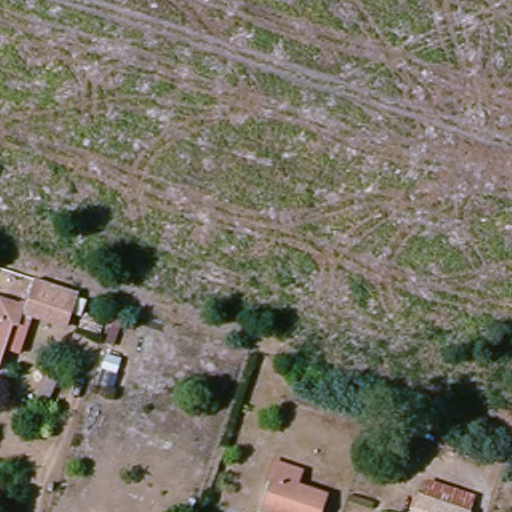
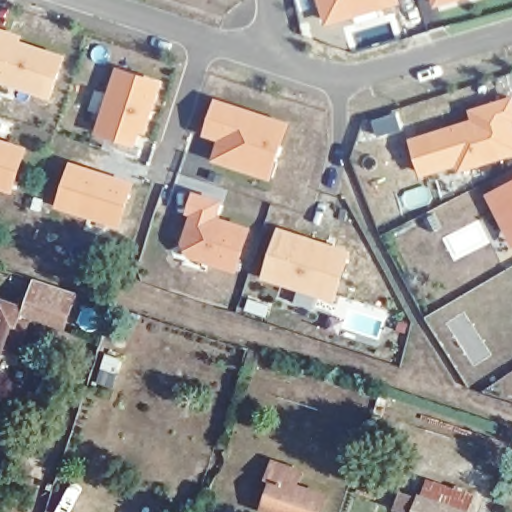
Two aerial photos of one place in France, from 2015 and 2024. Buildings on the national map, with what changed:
new [(402,5),(327,26),(319,0),(401,0),(402,5)]
new [(435,9),(432,0),(462,0),(435,9)]
new [(24,36),(23,41),(66,56),(53,100),(0,83),(0,28),(24,36)]
new [(164,83),(146,135),(141,134),(136,147),(95,135),(117,67),(164,83)]
new [(459,166),(421,177),(409,139),(471,121),(468,110),(512,96),(512,156),(460,173),(459,166)]
new [(290,124),(272,181),(210,162),(218,141),(203,136),(215,97),(290,124)]
new [(27,147),(14,196),(0,191),(0,139),(27,147)]
new [(135,184),(121,228),(55,207),(71,162),(135,184)]
new [(512,181),(512,247),(485,194),(512,181)]
new [(224,201),(219,217),(252,229),(237,274),(189,259),(181,242),(190,216),(186,215),(194,192),(224,201)]
new [(352,250),(336,304),(261,280),(279,227),(352,250)]
unchanged [(74,297),(65,328),(23,313),(31,283),(74,297)]
unchanged [(16,310),(10,327),(0,324),(0,326),(0,304),(16,310)]
unchanged [(322,502),(319,512),(260,512),(270,484),(322,502)]
unchanged [(471,512),(412,512),(420,491),(472,508),(471,512)]

